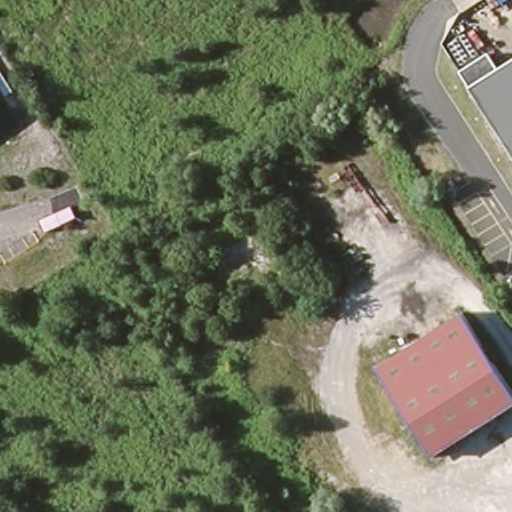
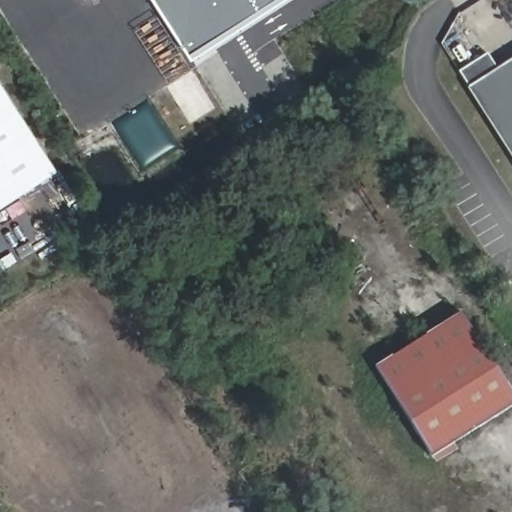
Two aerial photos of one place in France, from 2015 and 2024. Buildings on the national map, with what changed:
new [(154,0),(281,0),(190,58),(154,0)]
unchanged [(470,87),(460,72),(489,54),(499,70),(512,62),(512,153),(470,87)]
new [(0,207),(0,81),(58,171),(0,207)]
unchanged [(512,391),(512,407),(432,457),(375,367),(462,312),(512,391)]

